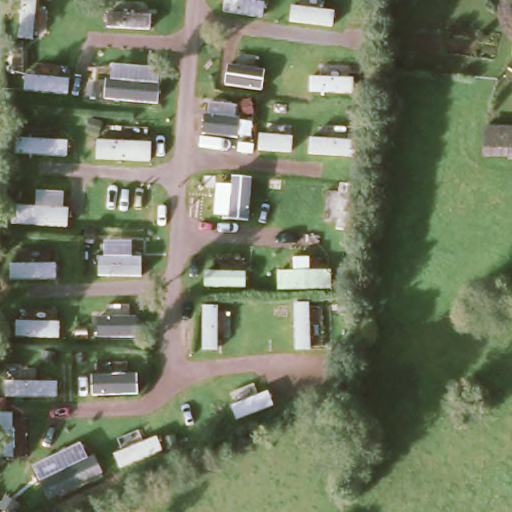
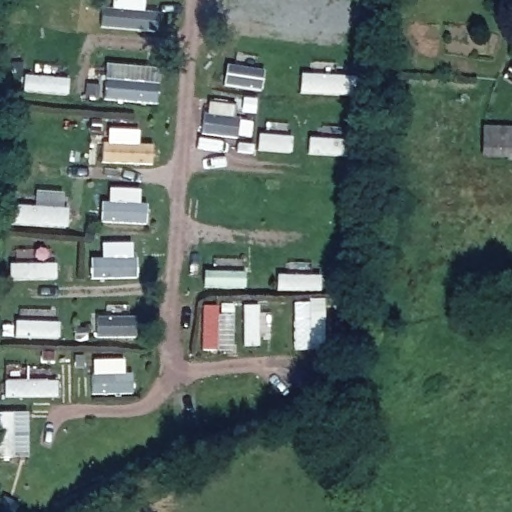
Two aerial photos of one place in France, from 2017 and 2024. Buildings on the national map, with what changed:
unchanged [(492,124),(512,125),(512,156),(491,156),(492,124)]

